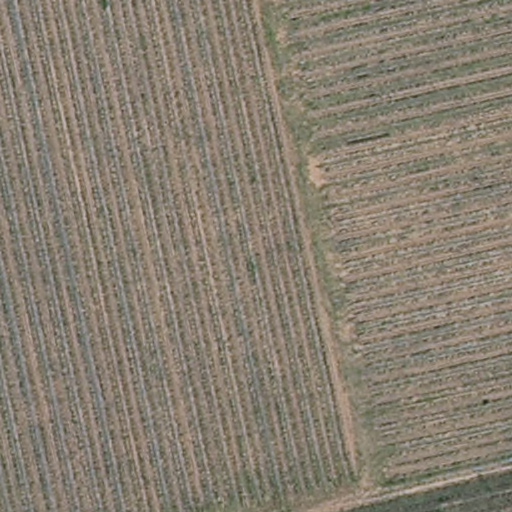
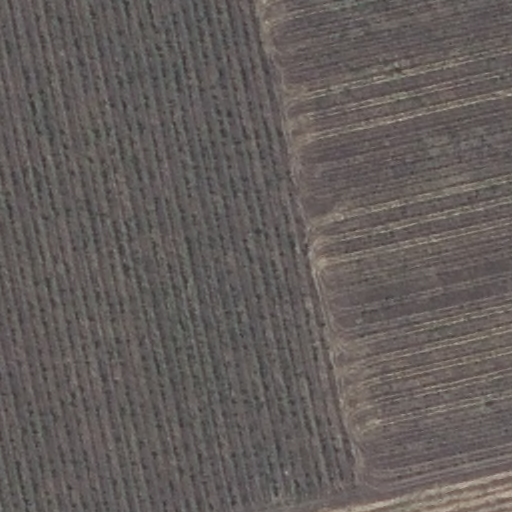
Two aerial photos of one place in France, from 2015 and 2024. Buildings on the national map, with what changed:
[]

